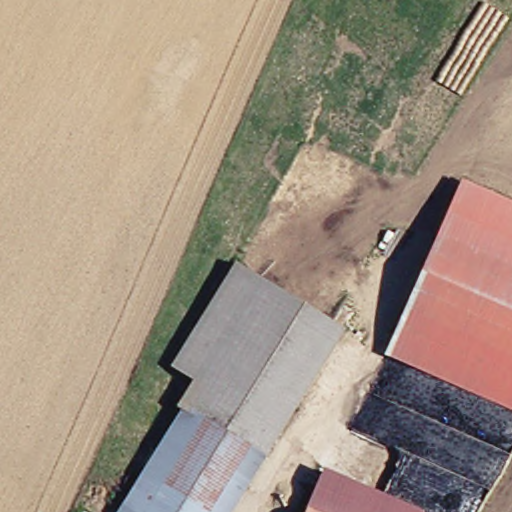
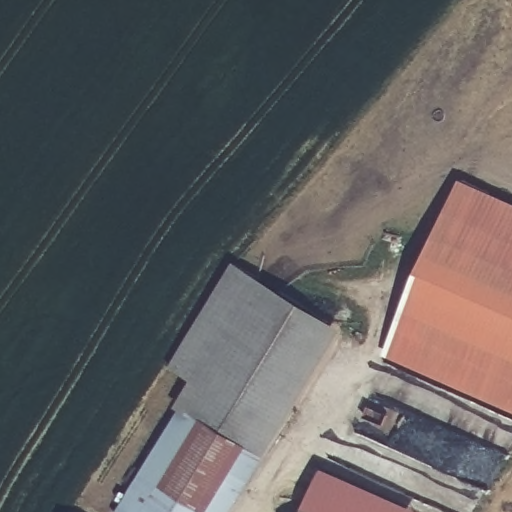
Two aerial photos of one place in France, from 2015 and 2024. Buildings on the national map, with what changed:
unchanged [(456,175),(512,200),(512,409),(380,350),(456,175)]
unchanged [(116,512),(137,479),(202,383),(184,370),(172,362),(241,266),(336,333),(296,391),(212,512),(116,512)]
unchanged [(301,509),(318,470),(416,512),(299,512),(301,509)]

